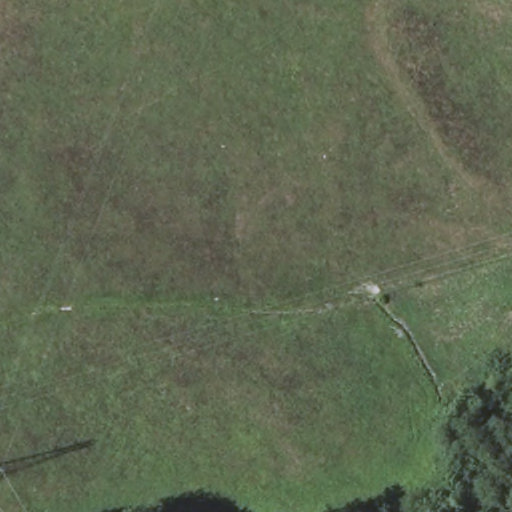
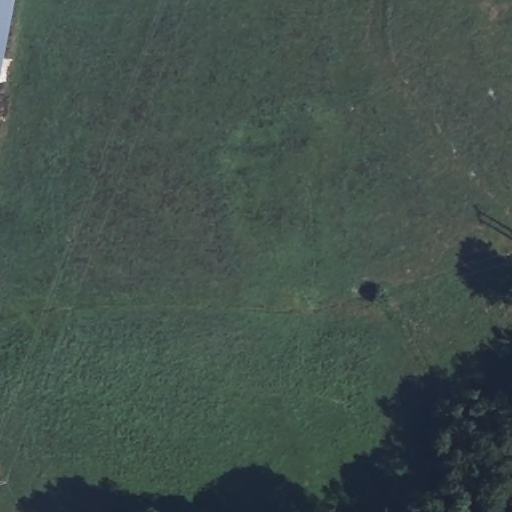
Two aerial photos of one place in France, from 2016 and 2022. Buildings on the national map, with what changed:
new [(14,0),(0,72),(0,0),(14,0)]

